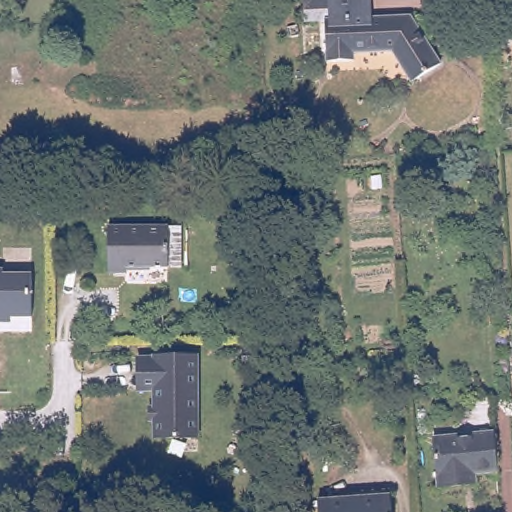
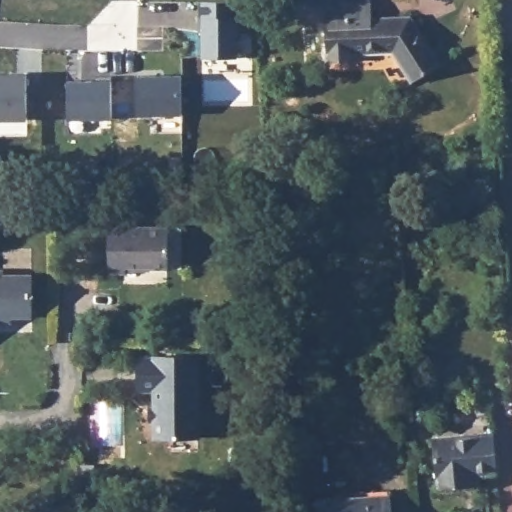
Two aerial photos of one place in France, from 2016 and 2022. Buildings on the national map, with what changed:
unchanged [(408,9),(437,56),(409,74),(390,43),(350,45),(351,52),(325,52),(323,20),(300,22),(299,0),(369,0),(369,10),(408,9)]
new [(26,75),(27,120),(0,120),(0,76),(26,75)]
new [(181,76),(181,115),(137,115),(136,76),(181,76)]
new [(67,81),(92,81),(92,77),(111,77),(111,119),(67,120),(67,81)]
unchanged [(51,171),(0,172),(0,142),(51,142),(51,171)]
unchanged [(105,229),(166,228),(166,269),(124,269),(123,275),(104,275),(105,229)]
unchanged [(4,270),(4,275),(31,275),(31,317),(0,317),(0,270),(4,270)]
unchanged [(153,442),(153,392),(138,390),(139,355),(196,352),(197,437),(153,442)]
unchanged [(457,490),(433,491),(430,442),(490,439),(492,478),(470,479),(471,489),(457,490)]
unchanged [(390,490),(392,512),(319,512),(317,499),(390,490)]

